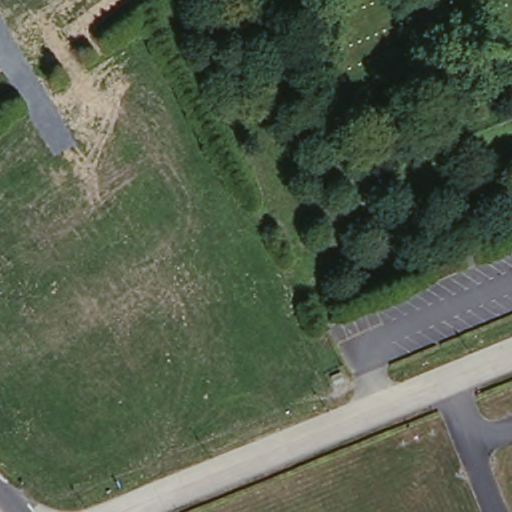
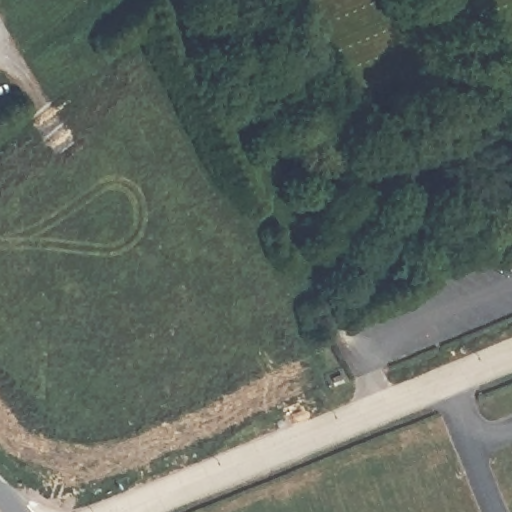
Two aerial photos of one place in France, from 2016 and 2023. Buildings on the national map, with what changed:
[]

